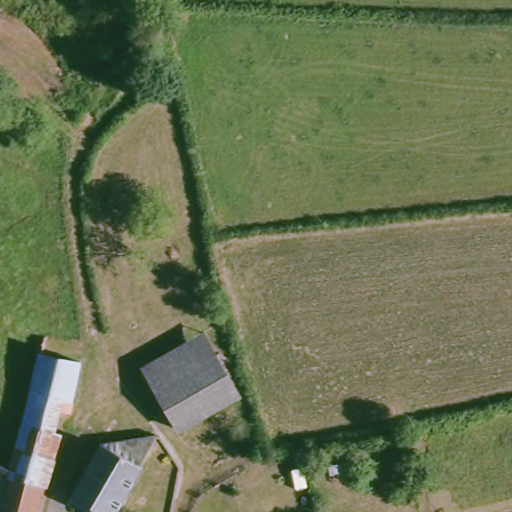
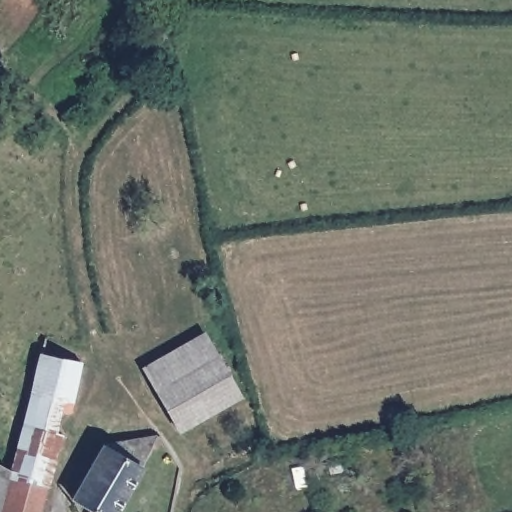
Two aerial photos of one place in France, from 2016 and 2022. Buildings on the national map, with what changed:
unchanged [(51,335),(95,346),(92,361),(77,412),(65,410),(60,429),(71,433),(55,487),(15,473),(47,349),(51,335)]
unchanged [(152,368),(207,340),(220,361),(163,390),(152,368)]
unchanged [(163,390),(220,361),(227,372),(245,402),(187,433),(170,402),(163,390)]
unchanged [(158,441),(145,468),(124,512),(100,512),(79,502),(102,450),(158,441)]
unchanged [(15,473),(55,487),(49,512),(0,512),(0,467),(15,473)]

